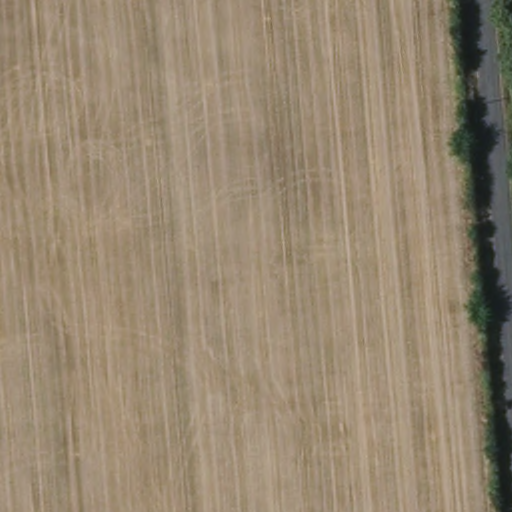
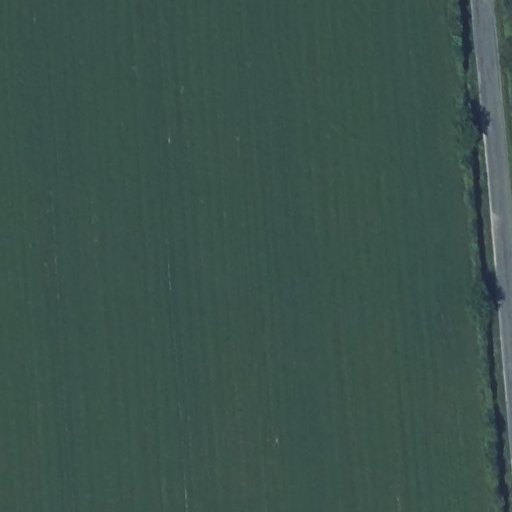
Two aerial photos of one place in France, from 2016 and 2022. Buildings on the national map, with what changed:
[]

